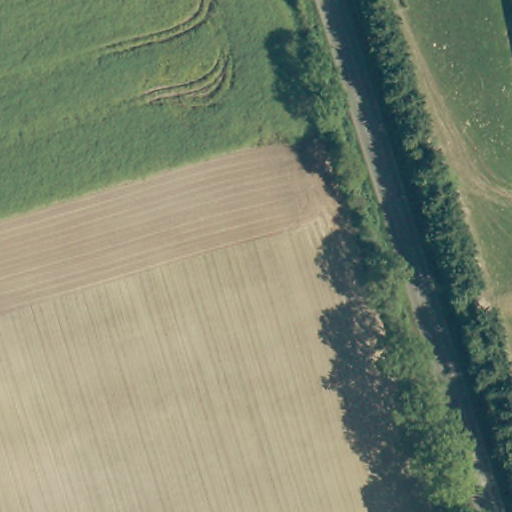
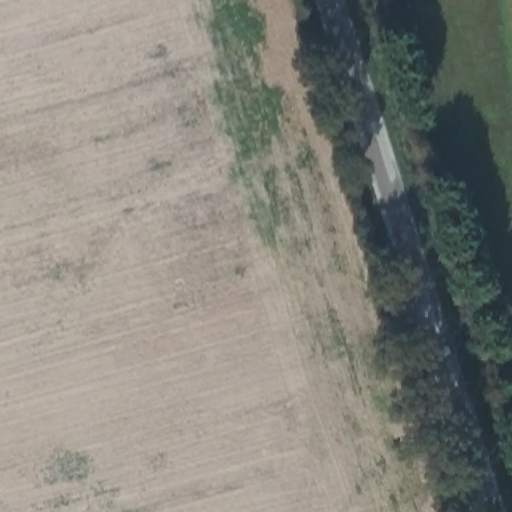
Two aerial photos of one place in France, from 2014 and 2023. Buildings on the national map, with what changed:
[]

